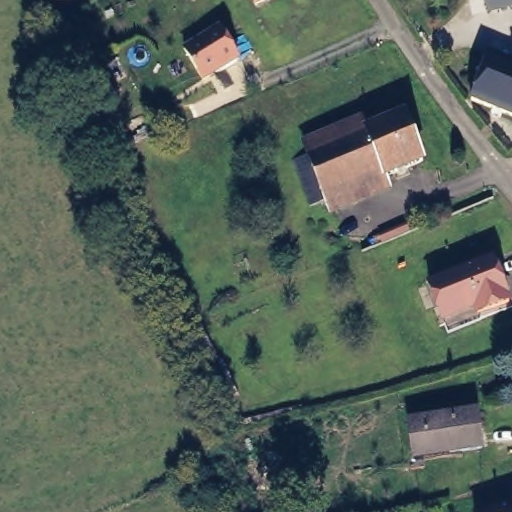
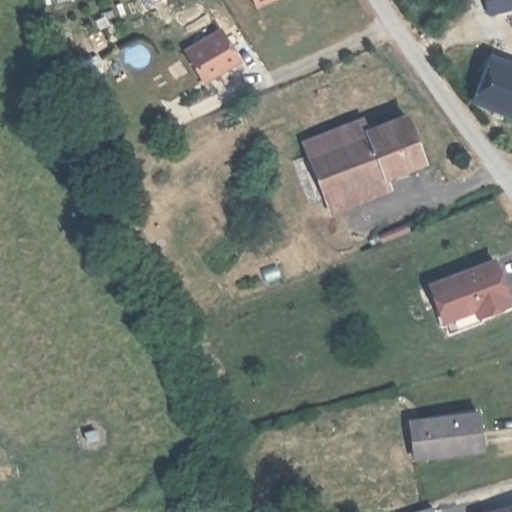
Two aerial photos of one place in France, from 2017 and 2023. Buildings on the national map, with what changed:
unchanged [(254,7),(251,0),(273,0),(254,7)]
unchanged [(512,8),(490,14),(486,0),(512,0),(512,8)]
unchanged [(219,26),(240,63),(202,83),(181,49),(219,26)]
unchanged [(486,52),(512,63),(512,116),(468,97),(486,52)]
unchanged [(428,165),(399,177),(381,131),(409,118),(428,165)]
unchanged [(399,177),(361,193),(343,147),(381,131),(399,177)]
unchanged [(361,193),(326,208),(308,163),(343,147),(361,193)]
unchanged [(491,259),(505,301),(474,313),(472,307),(441,318),(429,280),(491,259)]
unchanged [(477,410),(482,446),(451,450),(451,446),(415,452),(411,420),(477,410)]
unchanged [(512,512),(480,512),(512,503),(512,512)]

